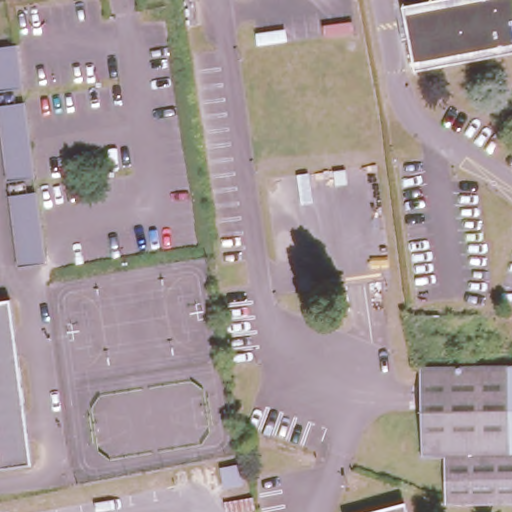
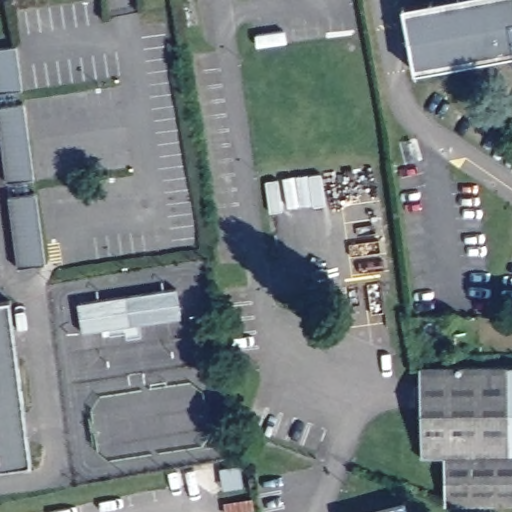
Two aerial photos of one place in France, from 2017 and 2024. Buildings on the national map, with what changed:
unchanged [(410,66),(397,1),(406,0),(512,0),(512,48),(410,66)]
unchanged [(22,87),(0,90),(0,49),(16,46),(22,87)]
unchanged [(6,180),(0,125),(0,106),(24,102),(34,177),(6,180)]
unchanged [(35,193),(44,265),(19,267),(9,196),(35,193)]
new [(78,301),(178,285),(182,316),(83,330),(78,301)]
unchanged [(30,465),(0,469),(0,302),(9,301),(30,465)]
unchanged [(454,505),(446,505),(445,457),(423,458),(421,366),(512,365),(512,504),(454,505)]
unchanged [(410,503),(412,512),(373,512),(410,503)]

